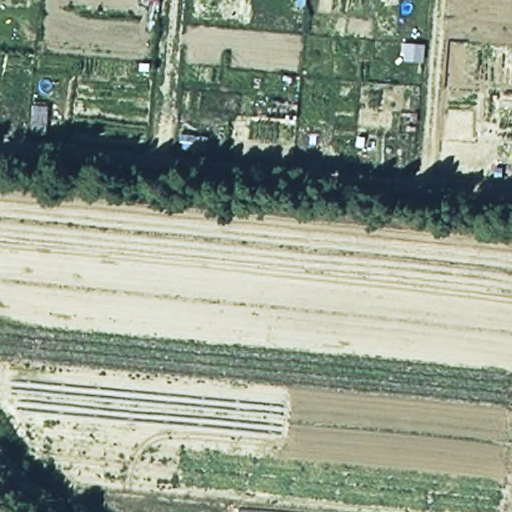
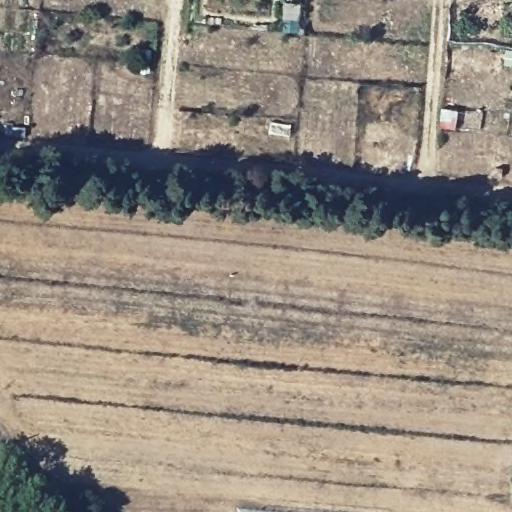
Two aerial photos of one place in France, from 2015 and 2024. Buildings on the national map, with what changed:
unchanged [(260,512),(238,512),(238,510),(260,512)]

